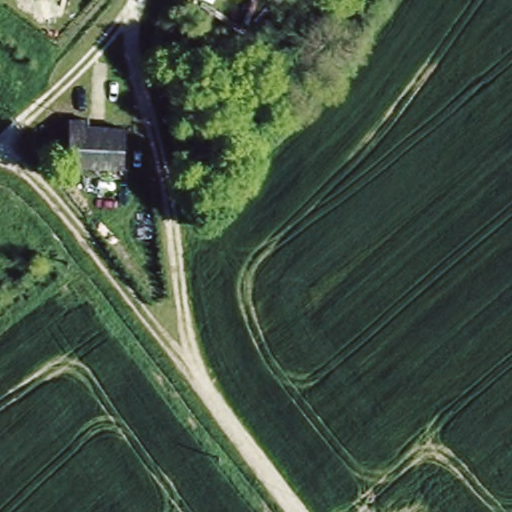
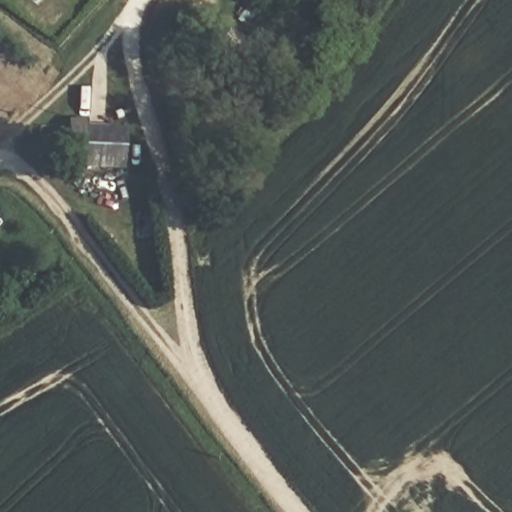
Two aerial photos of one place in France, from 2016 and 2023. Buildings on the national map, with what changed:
unchanged [(69,149),(68,124),(110,123),(111,148),(69,149)]

